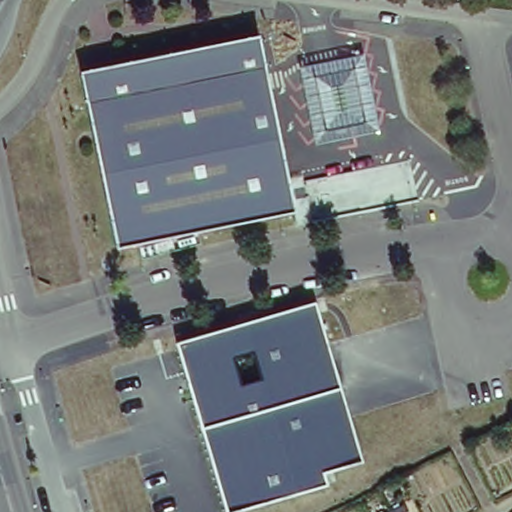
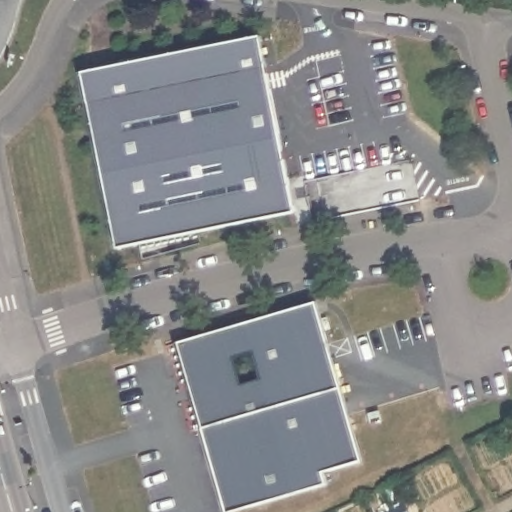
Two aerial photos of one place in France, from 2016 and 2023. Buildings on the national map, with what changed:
unchanged [(119,247),(85,82),(83,74),(114,67),(262,37),(297,211),(119,247)]
new [(357,56),(370,122),(316,132),(303,67),(357,56)]
unchanged [(362,461),(323,472),(327,485),(232,512),(225,512),(177,341),(317,301),(362,461)]
unchanged [(392,510),(402,505),(406,512),(387,512),(392,510)]

